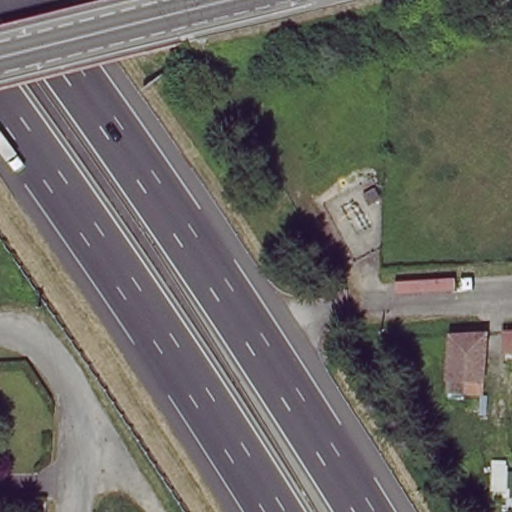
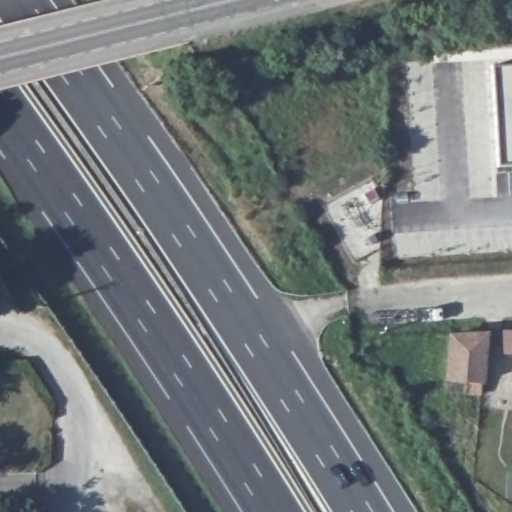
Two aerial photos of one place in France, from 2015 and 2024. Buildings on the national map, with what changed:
new [(512,60),(512,167),(495,168),(489,62),(512,60)]
unchanged [(503,348),(502,330),(512,330),(512,349),(503,348)]
unchanged [(479,380),(447,377),(449,333),(484,331),(479,380)]

